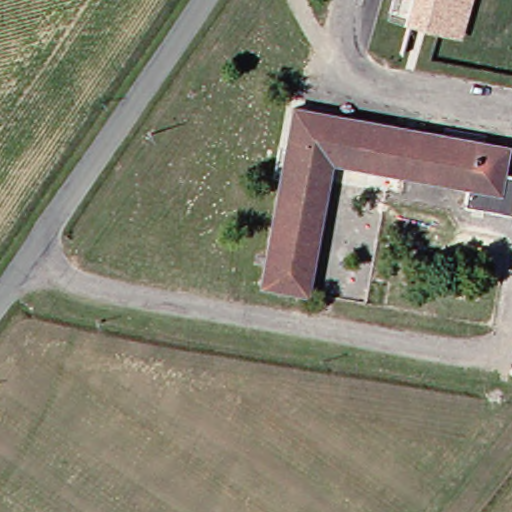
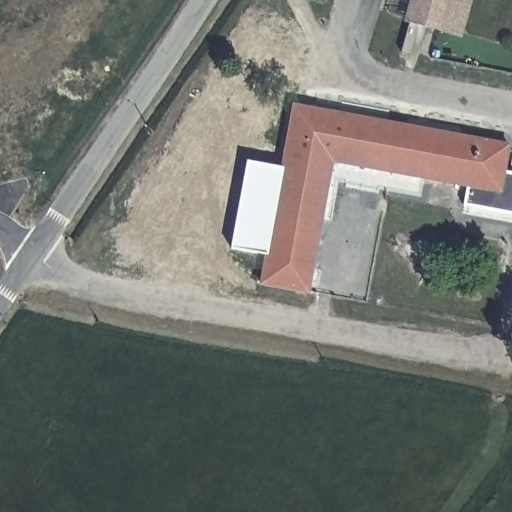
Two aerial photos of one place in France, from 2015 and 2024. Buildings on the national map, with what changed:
unchanged [(405,23),(411,0),(472,0),(461,38),(405,23)]
unchanged [(506,165),(512,166),(512,209),(470,201),(472,181),(335,160),(310,294),(267,286),(298,106),(510,142),(506,165)]
new [(247,161),(287,168),(272,255),(231,248),(247,161)]

